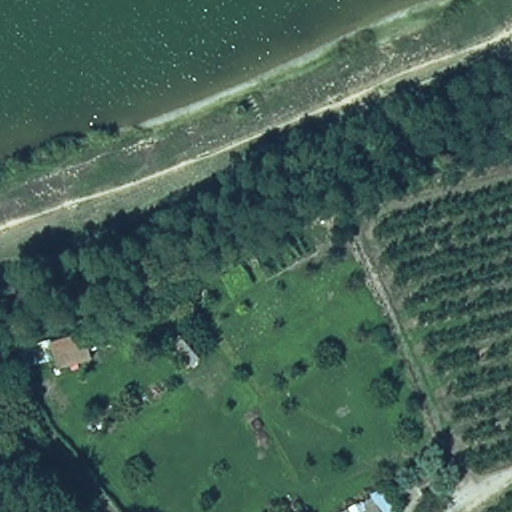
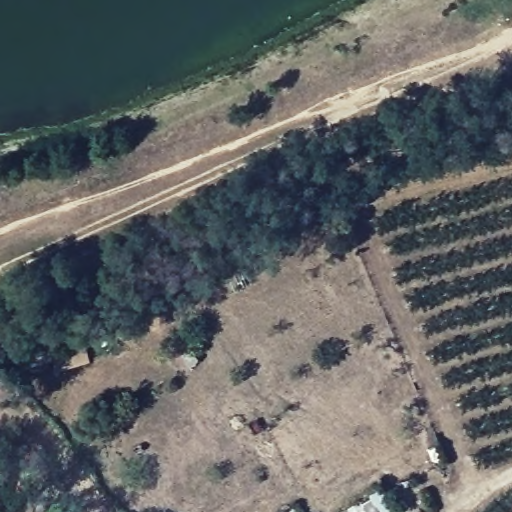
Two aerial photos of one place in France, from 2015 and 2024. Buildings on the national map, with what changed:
unchanged [(19,348),(50,341),(56,363),(22,370),(19,348)]
unchanged [(364,510),(361,500),(375,498),(380,512),(357,512),(364,510)]
unchanged [(347,506),(350,512),(334,512),(347,506)]

